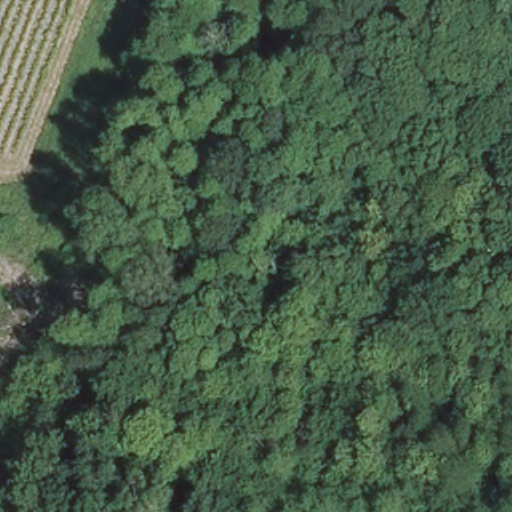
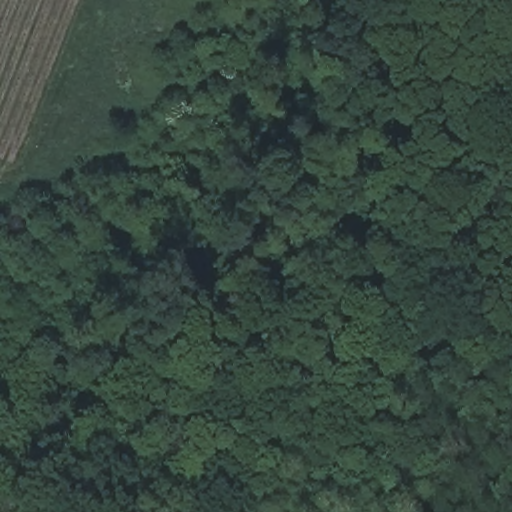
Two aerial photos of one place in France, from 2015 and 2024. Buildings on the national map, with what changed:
[]

